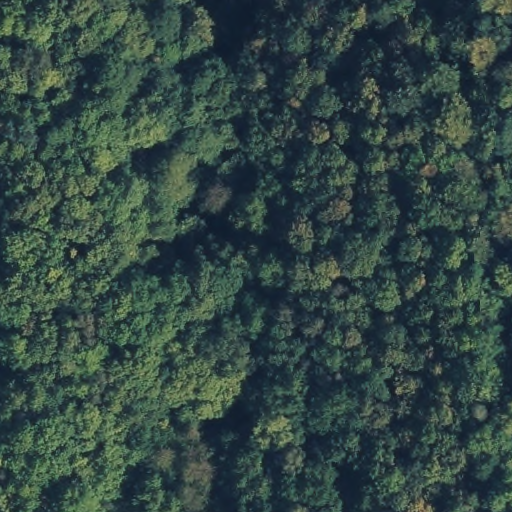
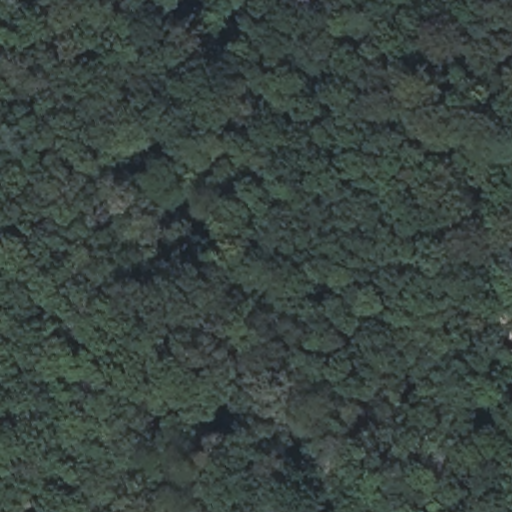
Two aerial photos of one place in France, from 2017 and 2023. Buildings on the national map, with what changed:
unchanged [(177,447),(164,451),(160,436),(161,435),(174,431),(177,447)]

